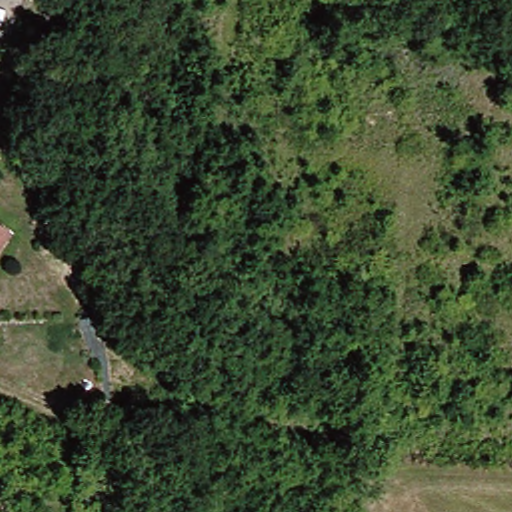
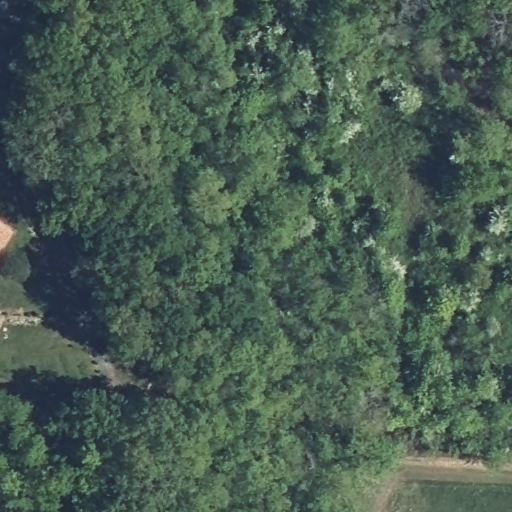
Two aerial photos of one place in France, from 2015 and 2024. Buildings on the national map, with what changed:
unchanged [(0,251),(0,221),(13,229),(0,251)]

